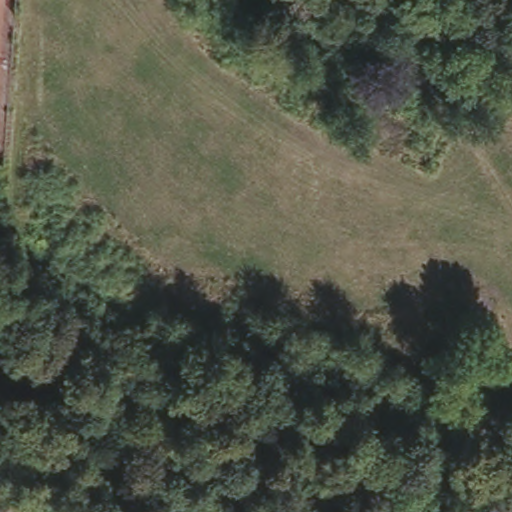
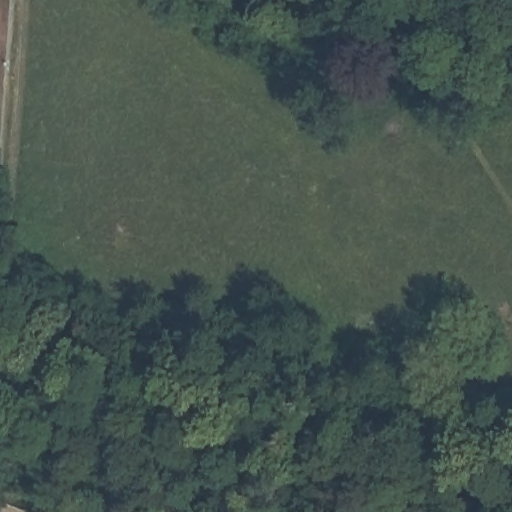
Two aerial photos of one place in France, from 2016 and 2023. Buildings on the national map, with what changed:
unchanged [(475,512),(467,512),(455,506),(459,495),(480,504),(475,512)]

